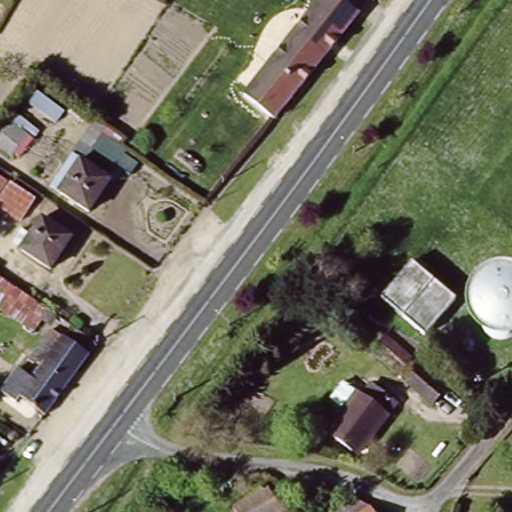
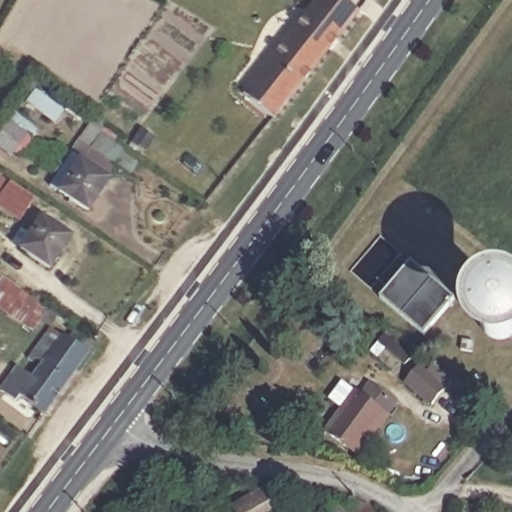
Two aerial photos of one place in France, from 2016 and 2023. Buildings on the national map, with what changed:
unchanged [(263,139),(252,130),(249,134),(241,127),(238,131),(227,122),(237,108),(240,111),(258,85),(316,5),(312,2),(314,0),(342,0),(360,13),(263,139)]
unchanged [(12,109),(40,132),(34,140),(16,161),(0,148),(0,123),(5,116),(12,109)]
unchanged [(123,136),(119,144),(130,150),(124,159),(140,168),(133,179),(119,171),(92,217),(52,193),(97,119),(123,136)]
unchanged [(35,198),(18,224),(0,212),(0,175),(35,198)]
unchanged [(50,272),(20,251),(42,219),(72,240),(50,272)]
unchanged [(383,302),(413,265),(421,272),(455,300),(425,337),(391,308),(383,302)]
unchanged [(56,316),(50,325),(42,320),(33,332),(0,311),(0,277),(56,316)]
unchanged [(30,385),(45,365),(33,356),(55,329),(66,338),(67,337),(70,338),(77,328),(98,343),(42,417),(18,399),(12,407),(0,397),(0,392),(15,373),(30,385)]
unchanged [(423,365),(454,390),(441,405),(410,381),(423,365)]
unchanged [(351,408),(358,399),(365,405),(379,388),(400,406),(380,431),(351,408)]
unchanged [(380,431),(360,457),(332,434),(351,408),(380,431)]
unchanged [(264,487),(281,512),(236,512),(233,507),(264,487)]
unchanged [(369,512),(339,512),(355,501),(365,507),(369,512)]

